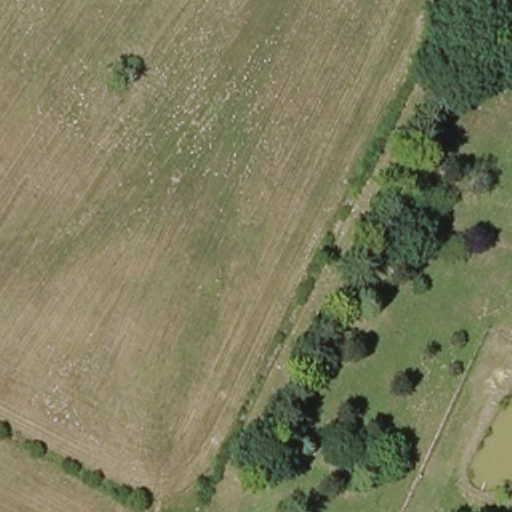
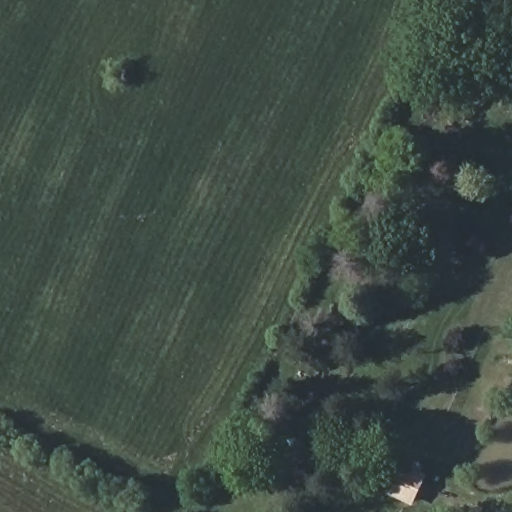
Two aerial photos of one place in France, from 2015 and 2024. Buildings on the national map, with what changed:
[]

